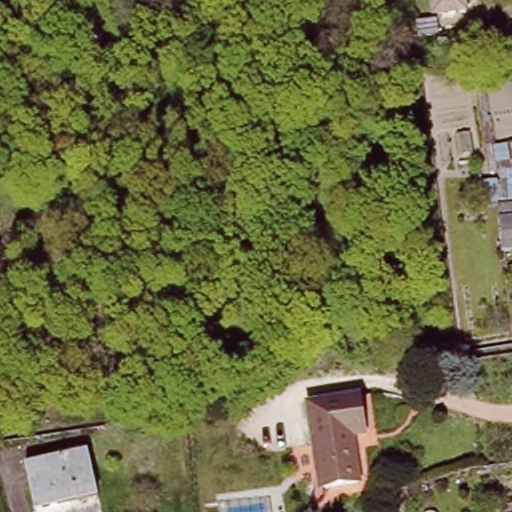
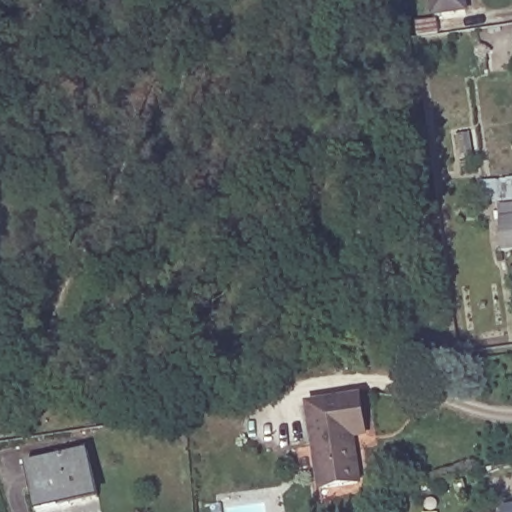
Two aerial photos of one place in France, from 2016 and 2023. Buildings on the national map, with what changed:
unchanged [(430,0),(463,0),(463,4),(431,9),(430,0)]
unchanged [(414,31),(413,29),(412,18),(431,15),(433,29),(414,31)]
unchanged [(501,219),(500,203),(483,204),(481,183),(498,181),(497,174),(492,174),(490,146),(512,145),(512,250),(510,250),(505,250),(501,219)]
unchanged [(348,438),(354,483),(317,489),(304,407),(355,399),(361,436),(348,438)]
unchanged [(68,497),(70,503),(37,511),(25,467),(88,452),(97,491),(68,497)]
unchanged [(498,506),(512,505),(512,512),(498,512),(498,506)]

